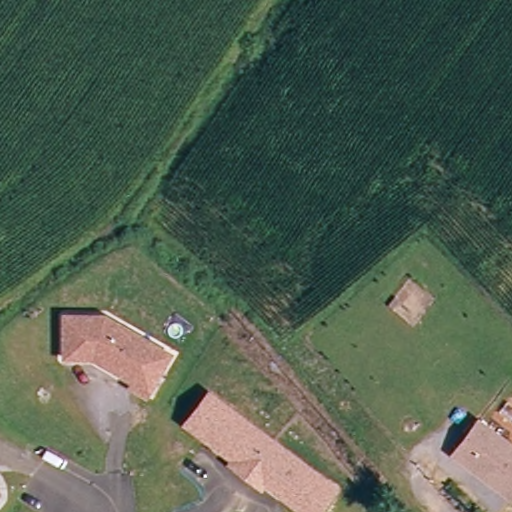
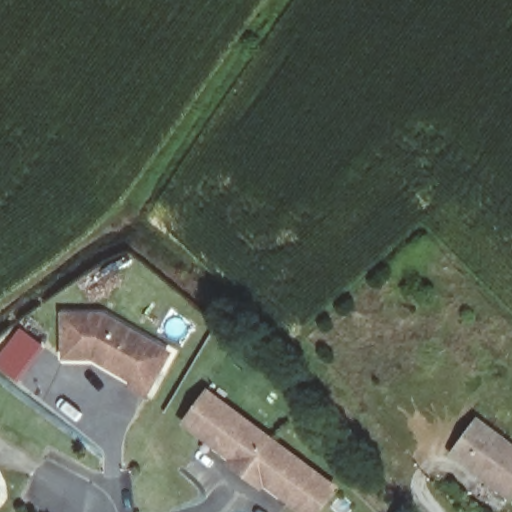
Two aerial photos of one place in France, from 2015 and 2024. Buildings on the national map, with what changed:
unchanged [(160,367),(143,392),(128,381),(130,377),(91,353),(63,354),(64,310),(105,312),(154,341),(169,351),(160,367)]
new [(20,327),(46,347),(18,382),(0,368),(0,354),(20,327)]
unchanged [(334,485),(315,512),(304,512),(262,482),(259,486),(228,463),(231,459),(182,424),(205,392),(334,485)]
unchanged [(512,499),(510,501),(452,455),(479,420),(512,447),(512,499)]

